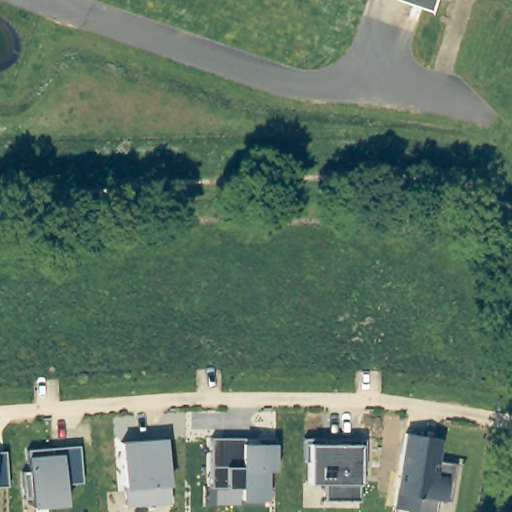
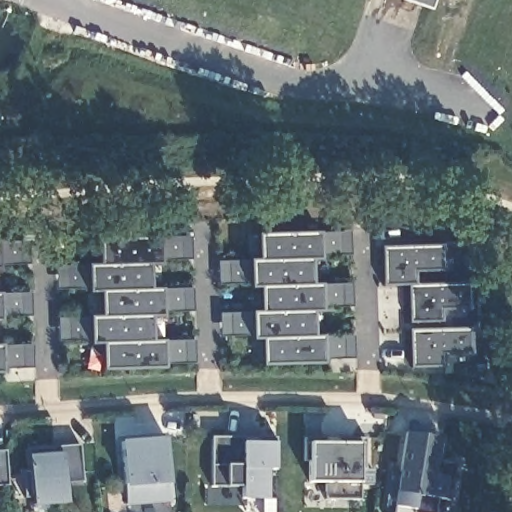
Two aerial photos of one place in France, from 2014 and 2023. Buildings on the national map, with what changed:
unchanged [(428,9),(401,0),(431,0),(428,9)]
new [(263,339),(252,339),(252,335),(220,336),(220,314),(262,313),(262,288),(251,288),(251,285),(219,284),(219,261),(260,262),(259,234),(351,231),(352,254),(321,255),(321,259),(310,259),(312,285),(352,284),(353,306),(322,307),(322,311),(312,312),(313,337),(354,336),(355,358),(324,359),(324,363),(262,365),(263,339)]
new [(58,318),(102,318),(102,293),(89,293),(89,289),(56,289),(57,264),(101,264),(101,237),(192,237),(192,259),(161,259),(161,263),(149,263),(150,289),(194,289),(194,311),(162,311),(162,316),(152,316),(152,341),(196,341),(196,362),(164,364),(165,368),(104,369),(102,344),(91,345),(90,341),(59,341),(58,318)]
new [(32,266),(0,268),(0,243),(31,243),(32,266)]
new [(445,247),(445,270),(416,270),(417,285),(470,285),(470,307),(442,307),(442,321),(410,323),(410,285),(385,286),(384,248),(445,247)]
new [(32,316),(2,317),(2,321),(0,321),(0,293),(32,293),(32,316)]
new [(473,330),(472,353),(443,353),(443,366),(412,366),(411,330),(473,330)]
new [(34,367),(2,368),(2,372),(0,372),(0,345),(34,345),(34,367)]
unchanged [(438,461),(455,464),(450,500),(437,498),(434,512),(410,512),(411,510),(394,507),(403,433),(441,437),(438,461)]
unchanged [(164,437),(167,484),(170,503),(127,507),(124,488),(119,441),(164,437)]
unchanged [(274,437),(274,443),(274,470),(267,470),(267,499),(241,499),(241,503),(216,503),(215,487),(211,487),(211,438),(274,437)]
unchanged [(303,444),(302,438),(367,439),(366,471),(357,471),(357,499),(325,499),(324,482),(308,482),(307,444),(303,444)]
unchanged [(26,450),(77,446),(81,482),(63,483),(65,505),(31,506),(26,456),(26,450)]
unchanged [(7,486),(0,486),(0,450),(4,450),(7,486)]

